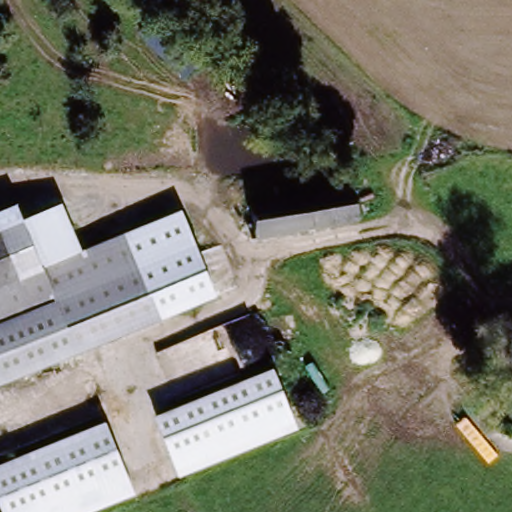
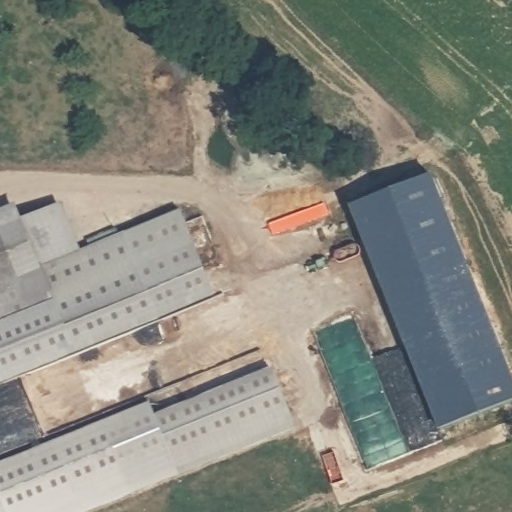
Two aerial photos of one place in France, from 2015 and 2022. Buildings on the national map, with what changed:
new [(197,59),(174,71),(145,17),(168,4),(197,59)]
demolished [(163,16),(203,61),(180,81),(138,34),(163,16)]
new [(433,177),(512,373),(512,406),(440,432),(351,208),(433,177)]
demolished [(354,191),(361,222),(222,252),(215,220),(354,191)]
unchanged [(39,274),(28,278),(17,283),(0,243),(0,210),(16,204),(22,218),(63,203),(81,255),(39,274)]
unchanged [(217,299),(161,322),(128,235),(182,211),(217,299)]
unchanged [(128,235),(161,322),(74,359),(39,274),(128,235)]
unchanged [(39,274),(74,359),(0,390),(0,243),(17,283),(39,274)]
unchanged [(273,369),(298,430),(179,476),(156,416),(273,369)]
new [(151,403),(156,416),(179,476),(134,495),(104,422),(151,403)]
unchanged [(90,512),(4,512),(0,504),(0,466),(104,422),(134,495),(90,512)]
new [(0,512),(0,504),(4,512),(0,512)]

